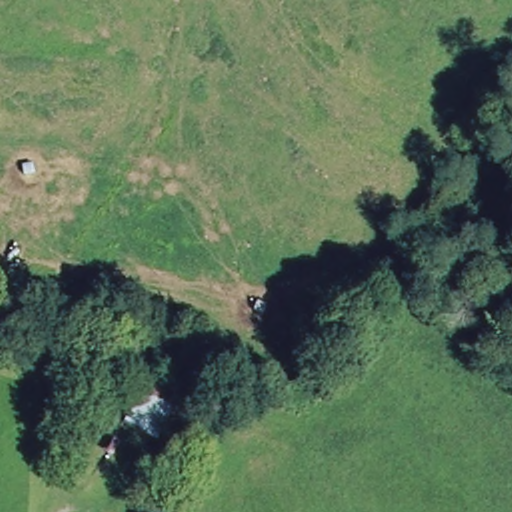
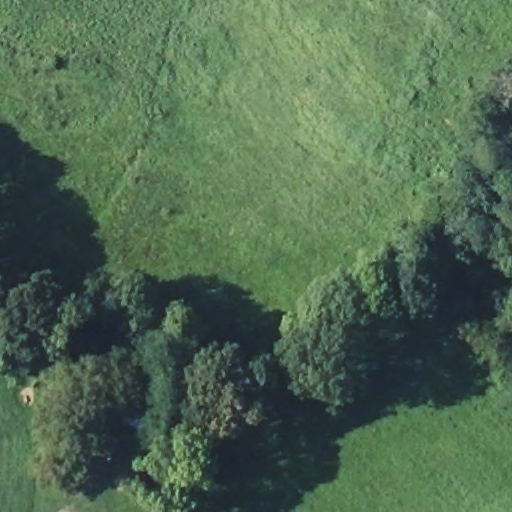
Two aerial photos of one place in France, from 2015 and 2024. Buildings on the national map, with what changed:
unchanged [(181,395),(156,443),(120,426),(142,376),(181,395)]

